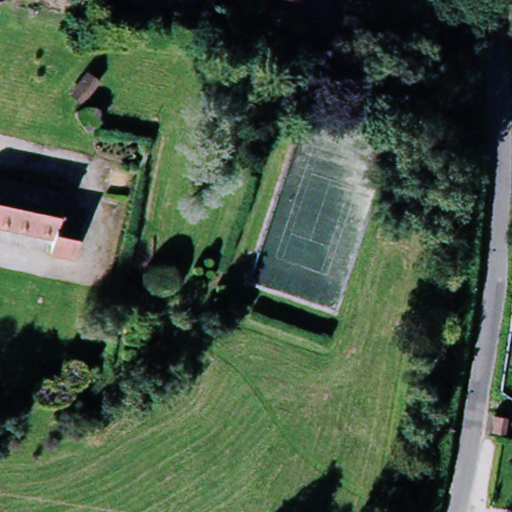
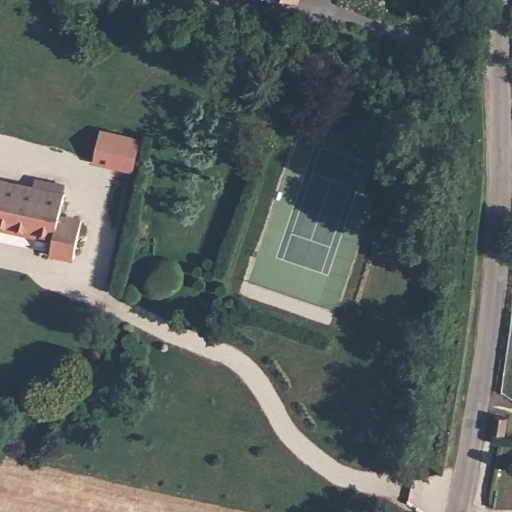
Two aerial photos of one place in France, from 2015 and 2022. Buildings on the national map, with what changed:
unchanged [(312,7),(284,0),(313,0),(312,7)]
new [(135,170),(97,164),(102,132),(140,139),(135,170)]
unchanged [(48,260),(50,244),(0,233),(0,181),(67,195),(62,222),(88,226),(82,266),(48,260)]

